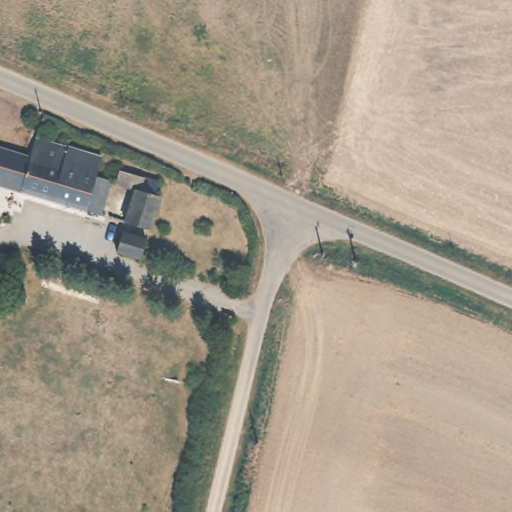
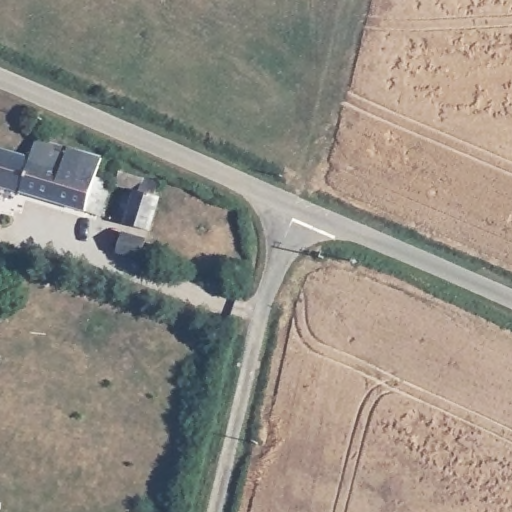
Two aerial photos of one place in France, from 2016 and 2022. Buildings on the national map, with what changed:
unchanged [(30,142),(94,164),(90,178),(106,183),(95,217),(0,185),(0,146),(26,155),(30,142)]
unchanged [(152,187),(149,197),(156,199),(144,234),(121,227),(132,192),(112,185),(117,174),(152,187)]
unchanged [(139,242),(134,259),(114,253),(120,235),(139,242)]
unchanged [(0,254),(8,257),(1,283),(0,282),(0,254)]

